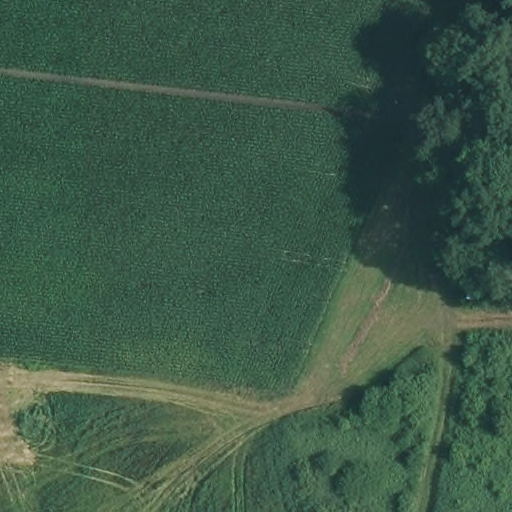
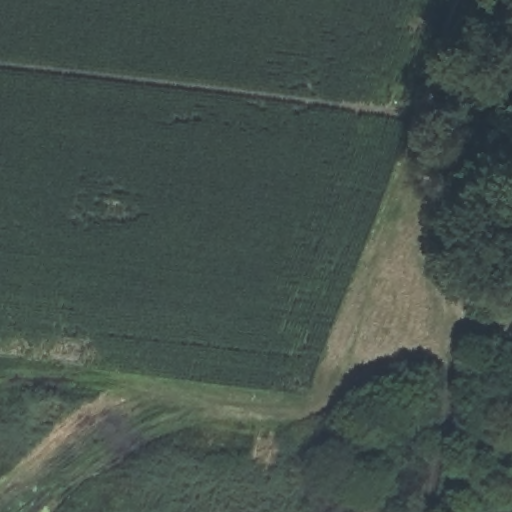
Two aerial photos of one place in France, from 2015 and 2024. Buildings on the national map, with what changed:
unchanged [(478,303),(465,301),(465,293),(479,293),(478,303)]

